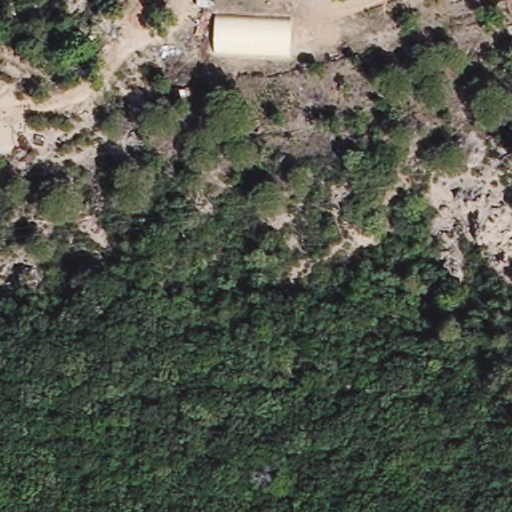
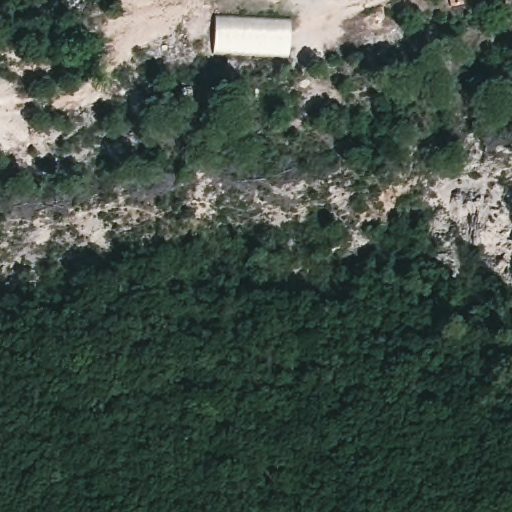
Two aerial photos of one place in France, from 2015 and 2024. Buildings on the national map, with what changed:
unchanged [(292,16),(290,56),(215,52),(217,13),(292,16)]

